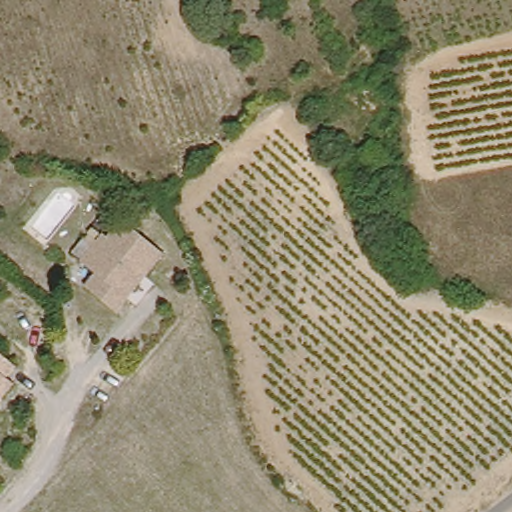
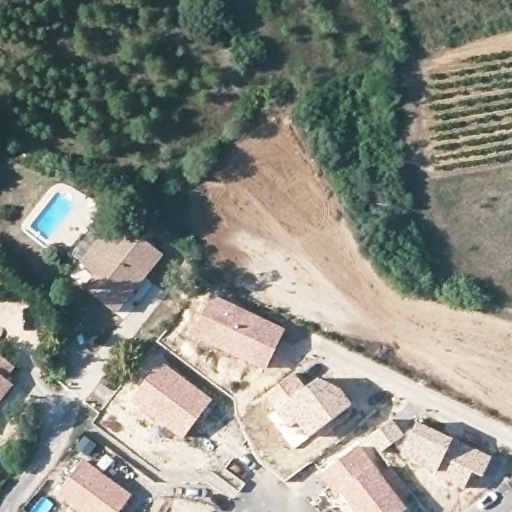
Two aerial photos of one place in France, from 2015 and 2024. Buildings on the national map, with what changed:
unchanged [(118,310),(88,286),(98,272),(88,264),(81,260),(103,232),(108,236),(123,218),(164,251),(146,273),(130,296),(118,310)]
new [(212,292),(286,328),(266,370),(190,336),(212,292)]
unchanged [(0,347),(18,361),(8,373),(11,376),(16,379),(0,400),(0,347)]
new [(160,358),(213,399),(181,440),(128,402),(160,358)]
new [(295,372),(306,386),(323,373),(341,387),(354,403),(308,438),(296,425),(289,430),(285,424),(265,395),(295,372)]
new [(392,417),(405,435),(381,452),(368,436),(392,417)]
new [(417,420),(455,437),(437,472),(400,452),(417,420)]
new [(437,472),(455,437),(493,456),(483,477),(473,472),(463,490),(436,476),(437,472)]
new [(408,507),(402,512),(351,512),(318,474),(359,443),(408,507)]
new [(95,467),(105,453),(113,460),(103,472),(133,494),(119,512),(77,512),(54,495),(82,458),(95,467)]

